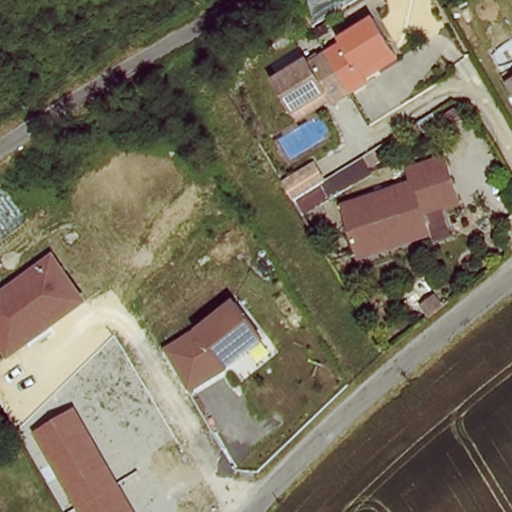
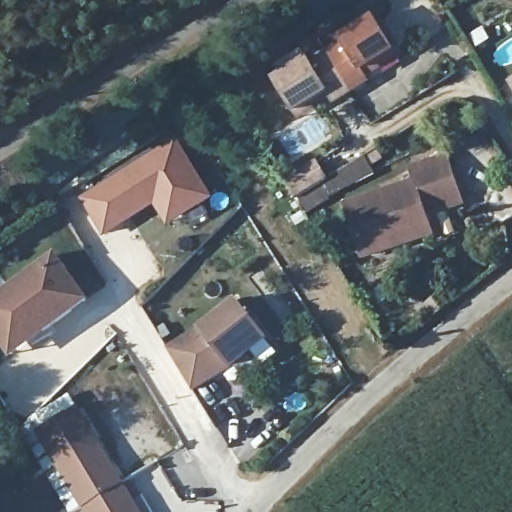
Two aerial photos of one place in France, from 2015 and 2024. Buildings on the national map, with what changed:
unchanged [(336,105),(331,96),(297,116),(278,83),(311,62),(312,66),(331,55),(347,46),(344,41),(377,21),(397,54),(365,73),(371,85),(355,94),(336,105)]
new [(80,198),(176,138),(201,177),(215,199),(169,228),(155,206),(104,238),(80,198)]
unchanged [(413,171),(449,158),(464,205),(429,218),(431,227),(392,241),(395,251),(364,261),(347,208),(417,184),(413,171)]
unchanged [(14,359),(0,342),(0,294),(57,253),(91,301),(14,359)]
unchanged [(269,341),(231,370),(195,391),(169,348),(202,327),(237,301),(269,341)]
unchanged [(36,434),(78,408),(140,512),(83,512),(36,434)]

